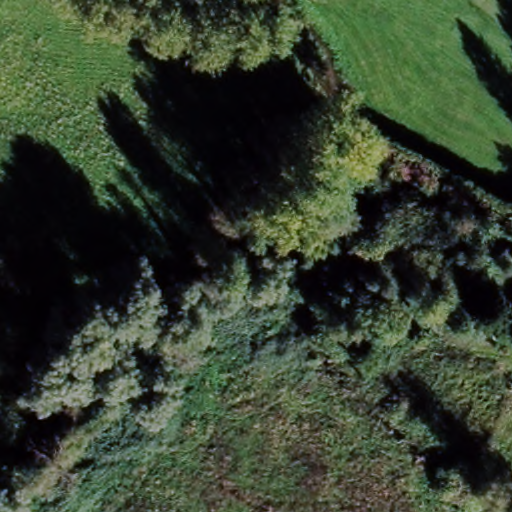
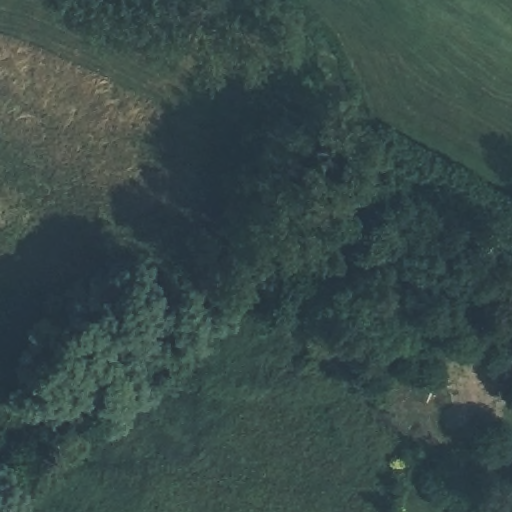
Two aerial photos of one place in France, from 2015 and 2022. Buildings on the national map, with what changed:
unchanged [(325,304),(338,292),(348,289),(359,298),(355,304),(359,309),(348,324),(325,304)]

